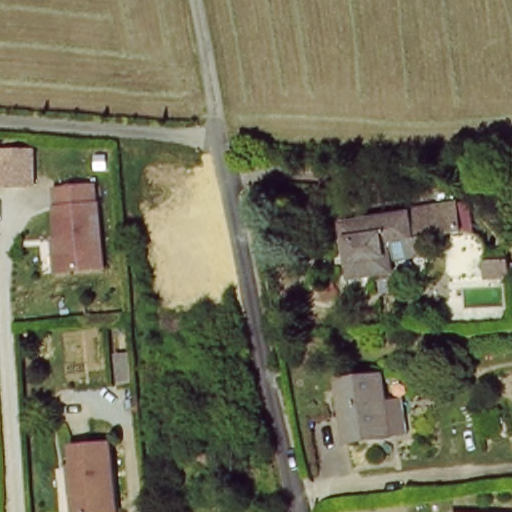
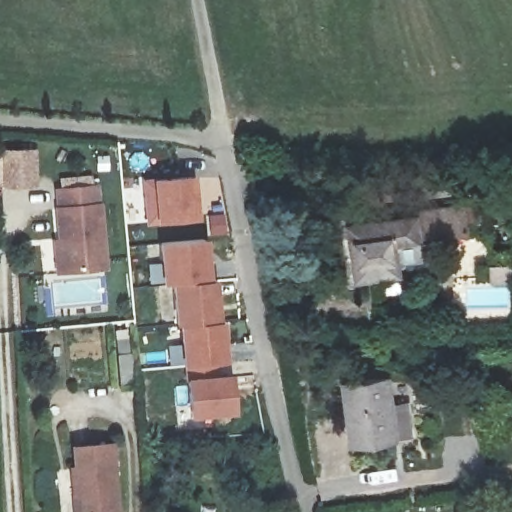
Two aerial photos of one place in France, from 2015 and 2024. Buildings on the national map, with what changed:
unchanged [(11,164),(47,162),(50,200),(14,203),(11,164)]
new [(155,221),(147,225),(143,181),(152,180),(195,175),(200,219),(155,221)]
unchanged [(52,211),(59,211),(58,197),(91,196),(91,209),(102,209),(105,273),(57,275),(52,211)]
unchanged [(442,210),(447,247),(396,254),(391,216),(442,210)]
unchanged [(345,222),(391,216),(396,254),(399,275),(350,280),(345,222)]
new [(190,419),(187,378),(182,366),(179,325),(176,325),(172,285),(162,285),(158,243),(207,240),(212,281),(218,280),(222,322),(226,322),(229,364),(215,364),(216,375),(233,373),(235,416),(190,419)]
unchanged [(339,385),(382,378),(392,440),(350,448),(339,385)]
unchanged [(67,495),(67,468),(73,467),(72,447),(113,445),(114,512),(67,512),(67,495)]

